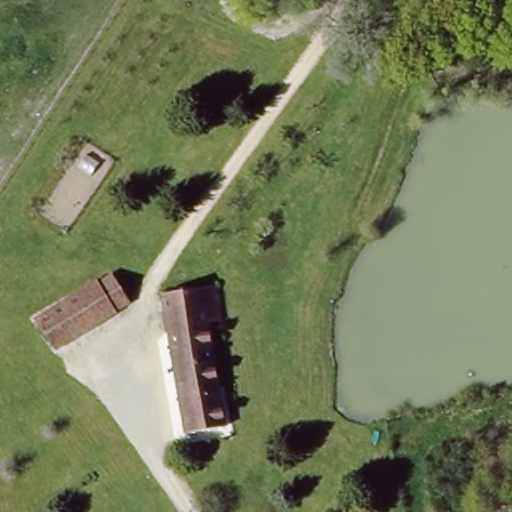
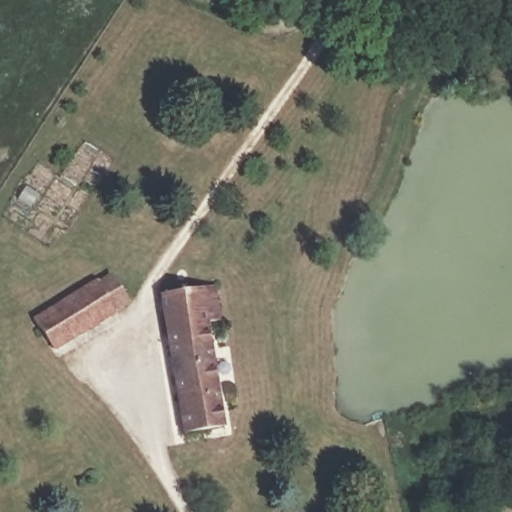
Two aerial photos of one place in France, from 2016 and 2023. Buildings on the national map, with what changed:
unchanged [(111,270),(130,301),(52,350),(32,317),(111,270)]
unchanged [(223,326),(201,329),(169,333),(164,294),(218,288),(223,326)]
unchanged [(210,396),(215,437),(182,441),(169,333),(201,329),(210,396)]

